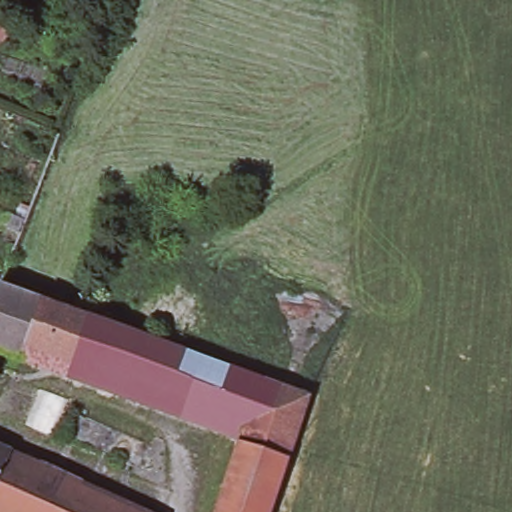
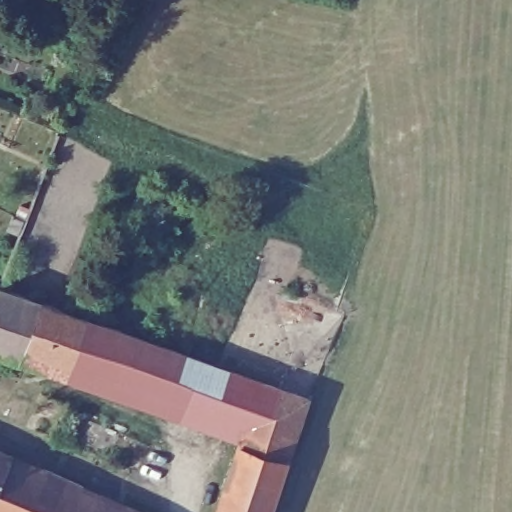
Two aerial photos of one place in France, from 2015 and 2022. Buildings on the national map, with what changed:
unchanged [(23,361),(0,351),(0,286),(190,355),(309,398),(295,441),(29,346),(23,361)]
unchanged [(289,459),(271,512),(218,512),(240,443),(289,459)]
unchanged [(12,453),(0,479),(0,447),(12,453)]
unchanged [(12,453),(144,512),(0,512),(0,479),(12,453)]

